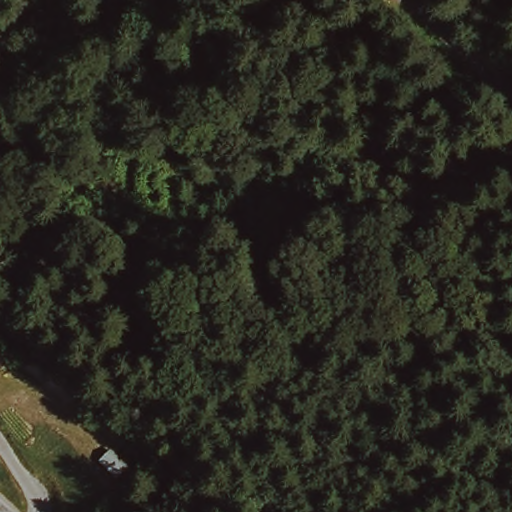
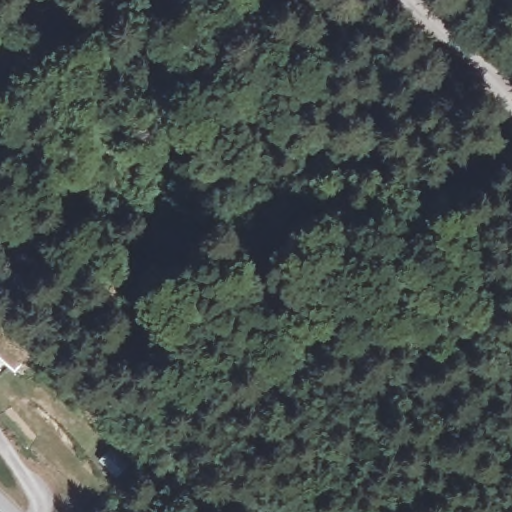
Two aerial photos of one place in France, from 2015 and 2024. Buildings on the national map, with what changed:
unchanged [(93,458),(94,456),(103,447),(118,462),(108,473),(93,458)]

